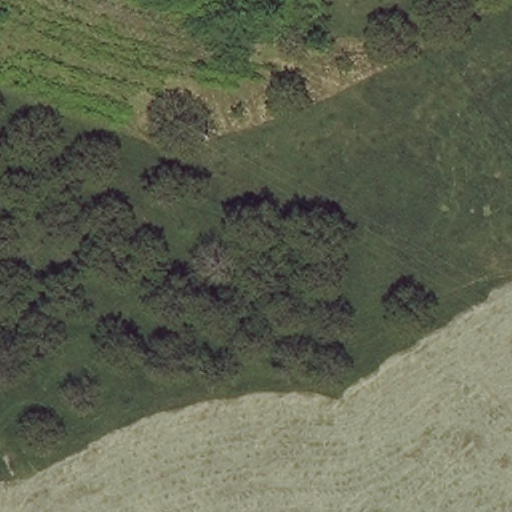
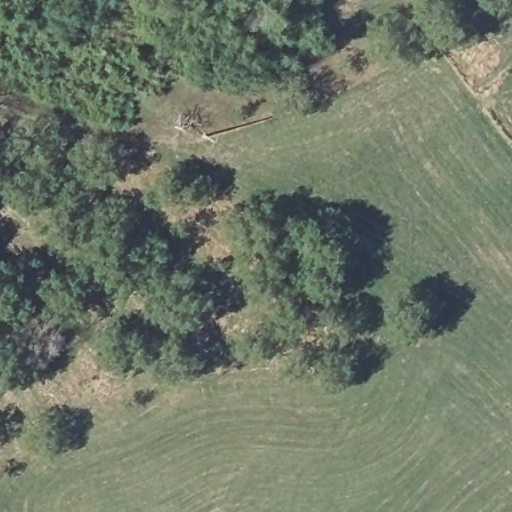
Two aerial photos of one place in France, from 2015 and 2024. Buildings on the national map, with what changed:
[]

